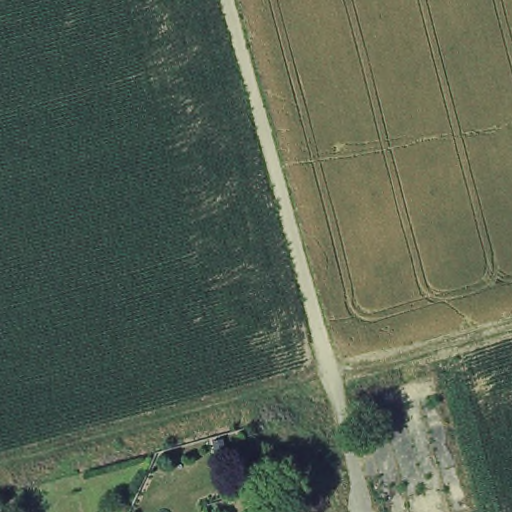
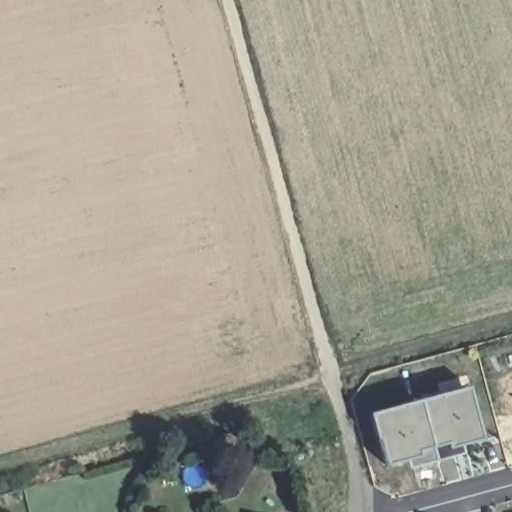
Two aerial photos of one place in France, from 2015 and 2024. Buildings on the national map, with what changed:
new [(447,443),(417,450),(418,456),(386,465),(378,438),(381,437),(377,420),(396,415),(394,408),(469,388),(482,439),(449,448),(447,443)]

